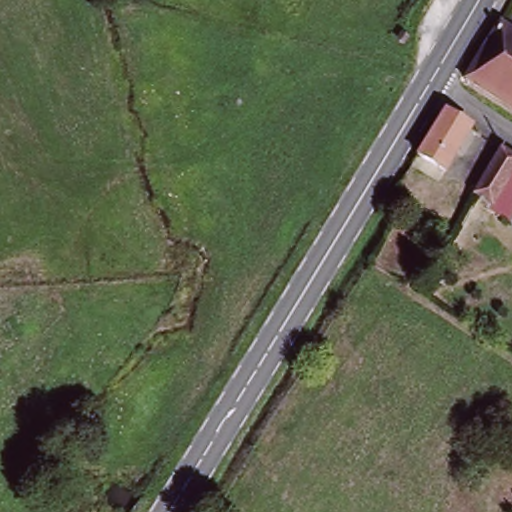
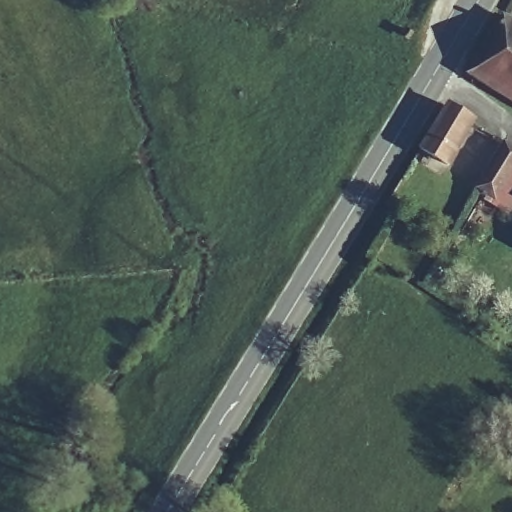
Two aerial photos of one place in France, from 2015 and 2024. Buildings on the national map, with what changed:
unchanged [(466,76),(503,20),(512,26),(512,106),(466,76)]
unchanged [(419,151),(447,109),(474,125),(446,169),(419,151)]
unchanged [(473,191),(503,142),(512,148),(512,202),(507,210),(473,191)]

